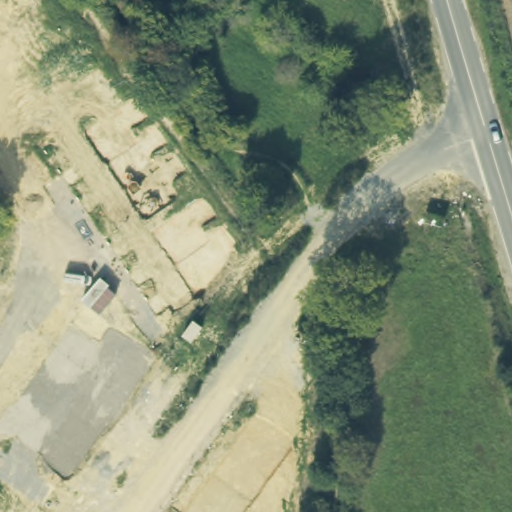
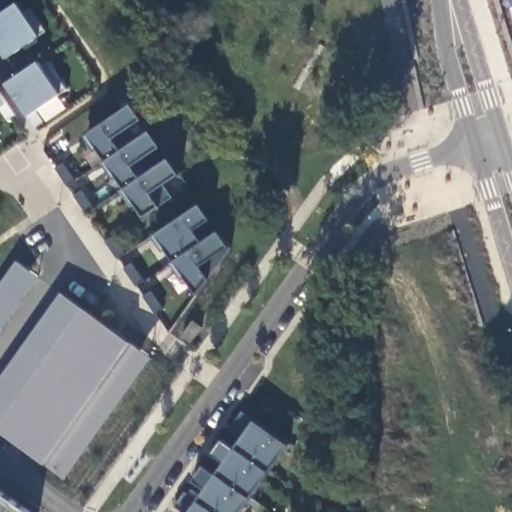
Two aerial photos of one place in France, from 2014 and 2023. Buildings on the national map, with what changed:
new [(40,37),(7,60),(0,49),(0,14),(19,2),(25,12),(30,7),(46,31),(40,37)]
new [(46,72),(51,66),(67,89),(61,94),(28,116),(6,84),(39,61),(46,72)]
new [(8,102),(0,108),(0,91),(8,102)]
new [(164,184),(165,185),(172,197),(160,205),(145,215),(136,203),(133,206),(123,190),(126,187),(117,176),(115,178),(104,162),(108,159),(99,147),(96,150),(85,136),(132,103),(142,119),(128,128),(136,140),(150,130),(161,146),(146,156),(155,167),(170,157),(180,172),(164,184)]
unchanged [(211,218),(195,229),(204,241),(219,230),(229,247),(200,266),(209,277),(197,292),(186,276),(182,277),(172,262),(176,260),(167,247),(164,250),(155,235),(200,203),(211,218)]
new [(0,334),(0,283),(17,259),(40,278),(0,334)]
new [(60,291),(84,307),(0,424),(0,378),(60,291)]
new [(67,480),(45,463),(0,431),(0,424),(84,307),(132,342),(154,357),(67,480)]
new [(176,507),(186,492),(199,500),(207,487),(195,480),(205,466),(217,473),(225,462),(214,453),(224,439),(236,447),(245,435),(233,427),(243,412),(255,420),(290,444),(241,512),(184,512),(176,507)]
new [(32,512),(0,512),(0,489),(32,512)]

